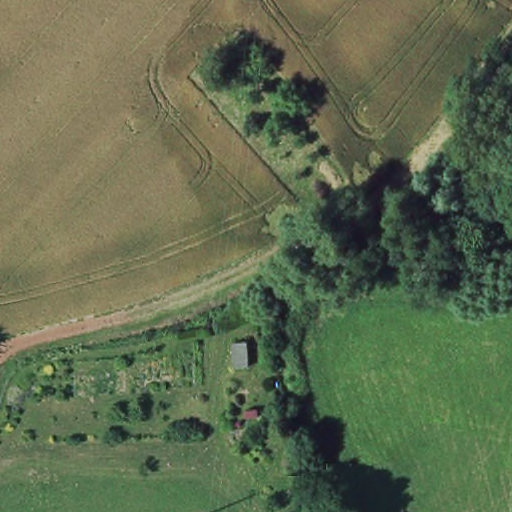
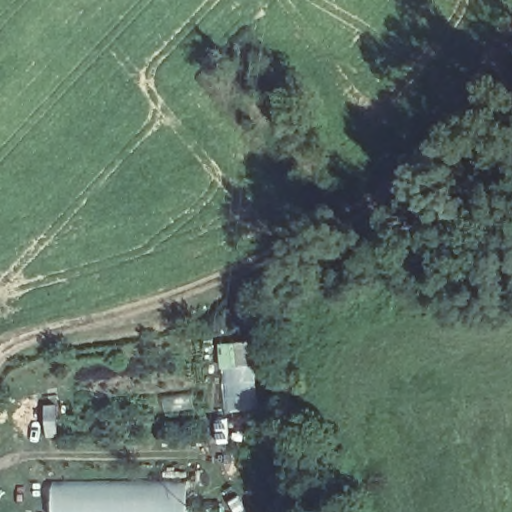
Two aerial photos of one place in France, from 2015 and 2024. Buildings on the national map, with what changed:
new [(194,480),(194,512),(53,512),(53,481),(194,480)]

